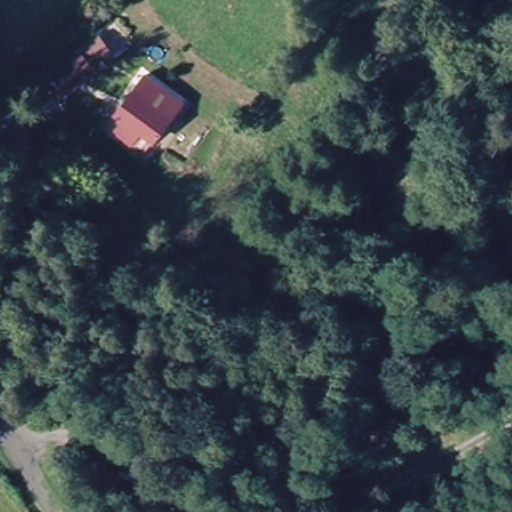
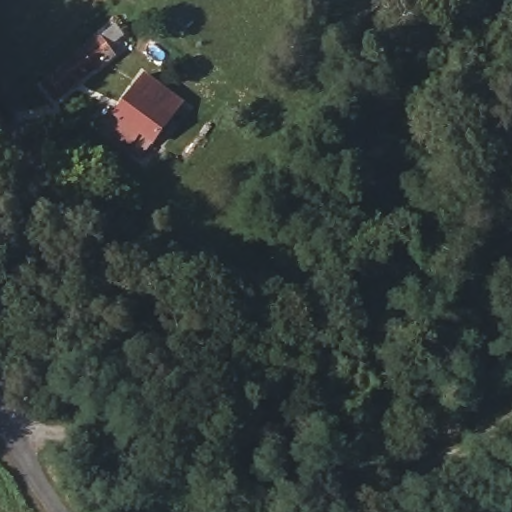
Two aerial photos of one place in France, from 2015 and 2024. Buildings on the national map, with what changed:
unchanged [(108,57),(55,99),(40,80),(89,37),(108,57)]
unchanged [(125,144),(130,129),(116,120),(135,79),(180,103),(164,147),(147,140),(142,153),(125,144)]

